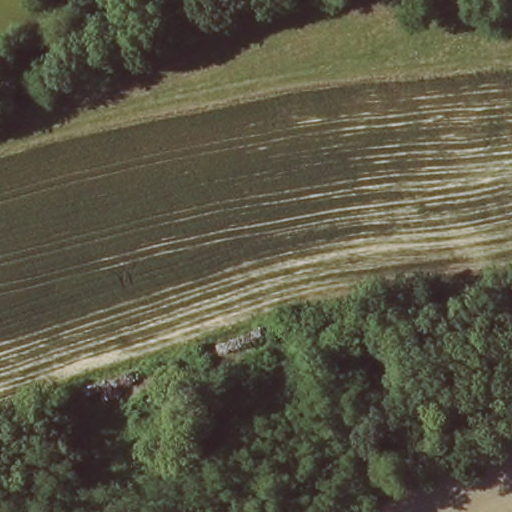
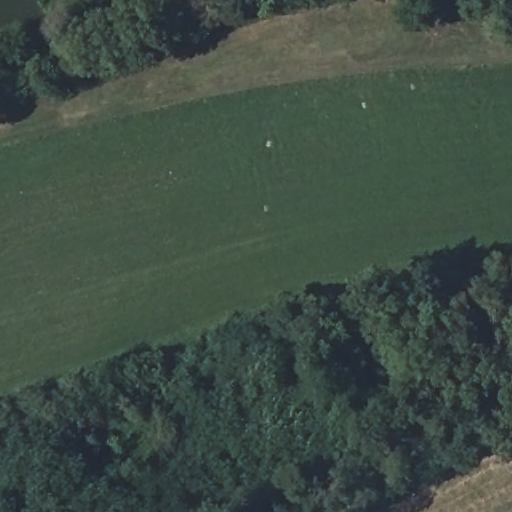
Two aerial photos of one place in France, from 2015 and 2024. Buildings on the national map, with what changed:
unchanged [(474,0),(480,13),(443,25),(431,0),(474,0)]

